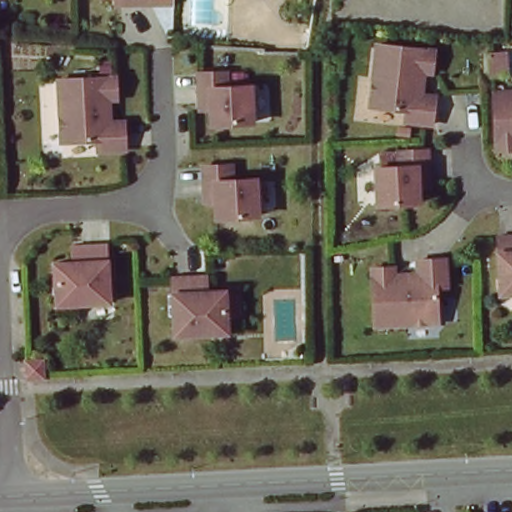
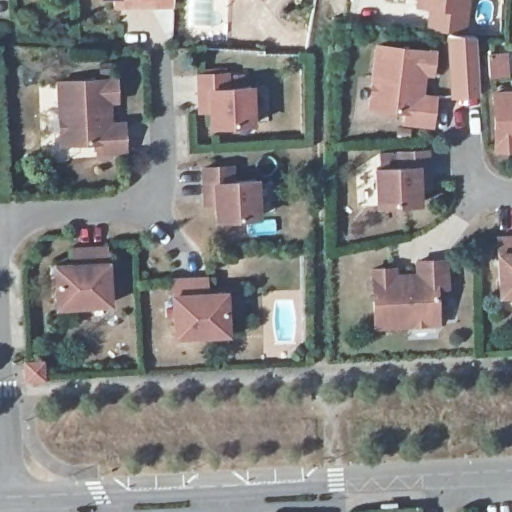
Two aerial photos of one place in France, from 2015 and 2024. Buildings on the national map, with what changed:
new [(465,11),(463,39),(428,37),(427,14),(415,14),(416,0),(473,0),(472,11),(465,11)]
unchanged [(413,73),(411,90),(424,91),(421,120),(394,116),(395,106),(360,102),(367,39),(424,46),(421,68),(408,66),(408,71),(413,73)]
unchanged [(199,100),(197,69),(226,68),(227,83),(250,81),(253,119),(211,121),(210,106),(199,106),(199,100)]
unchanged [(119,146),(92,148),(92,136),(56,139),(52,76),(110,73),(111,95),(98,95),(98,101),(103,101),(104,119),(118,118),(119,146)]
unchanged [(488,88),(512,87),(512,131),(512,144),(491,146),(488,88)]
unchanged [(413,183),(413,198),(371,200),(369,163),(393,161),(392,146),(421,145),(423,176),(423,183),(413,183)]
unchanged [(199,193),(197,162),(226,161),(227,176),(250,175),(252,212),(211,214),(210,199),(199,200),(199,193)]
unchanged [(491,232),(512,230),(512,288),(495,289),(491,232)]
unchanged [(50,294),(48,260),(67,259),(66,243),(72,243),(101,241),(104,298),(68,300),(51,301),(50,294)]
unchanged [(395,270),(413,269),(412,255),(441,254),(442,281),(431,282),(433,318),(370,321),(367,264),(389,262),(390,276),(395,275),(395,270)]
unchanged [(205,329),(169,331),(167,274),(194,272),(201,272),(202,288),(220,287),(222,321),(222,328),(205,329)]

